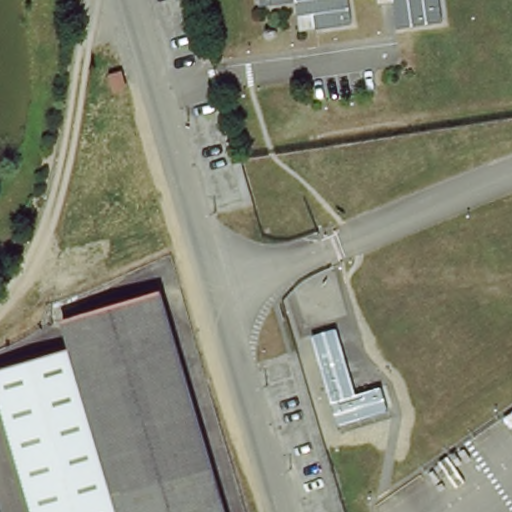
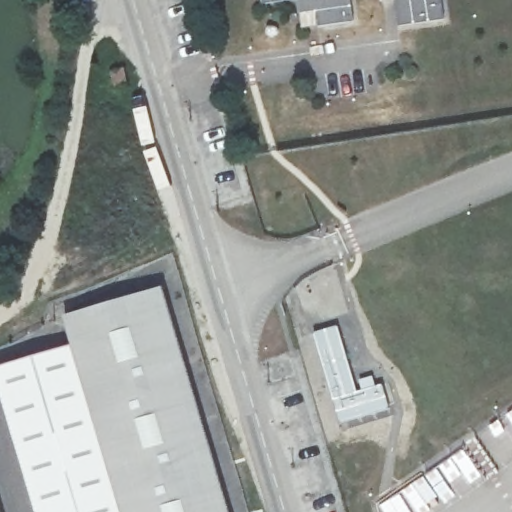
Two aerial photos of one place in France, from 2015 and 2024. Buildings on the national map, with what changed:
unchanged [(361,25),(308,33),(304,3),(264,4),(264,0),(359,0),(361,25)]
unchanged [(449,22),(404,26),(399,0),(446,0),(449,22)]
unchanged [(66,318),(167,286),(235,512),(39,512),(0,385),(0,369),(73,346),(66,318)]
unchanged [(363,391),(394,383),(403,411),(343,429),(316,334),(341,326),(363,391)]
unchanged [(0,512),(0,492),(6,512),(0,512)]

